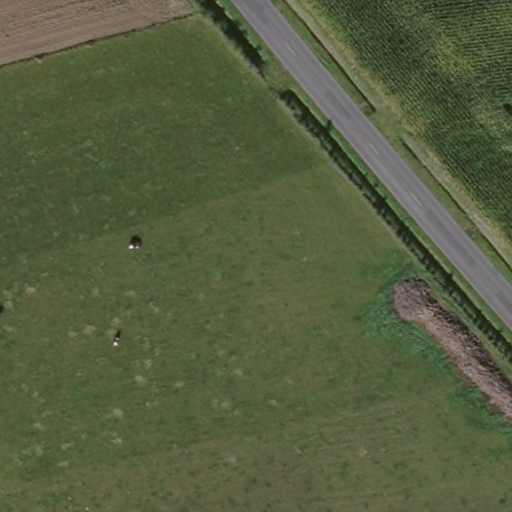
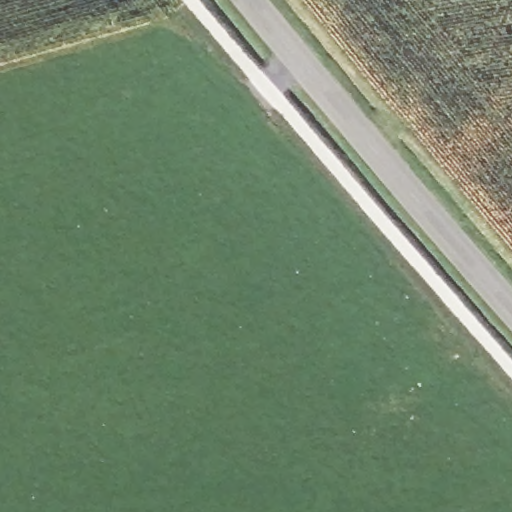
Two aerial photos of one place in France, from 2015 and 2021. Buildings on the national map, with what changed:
[]

